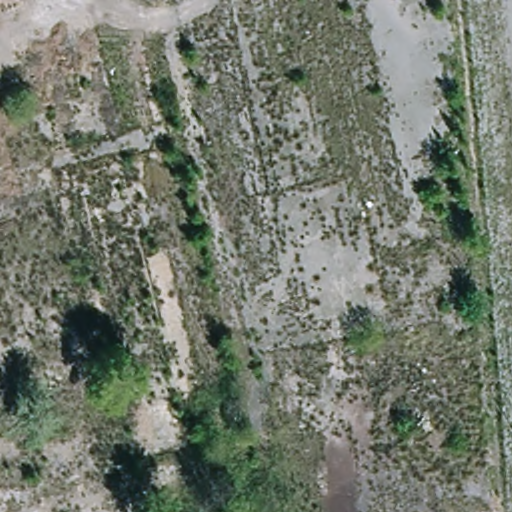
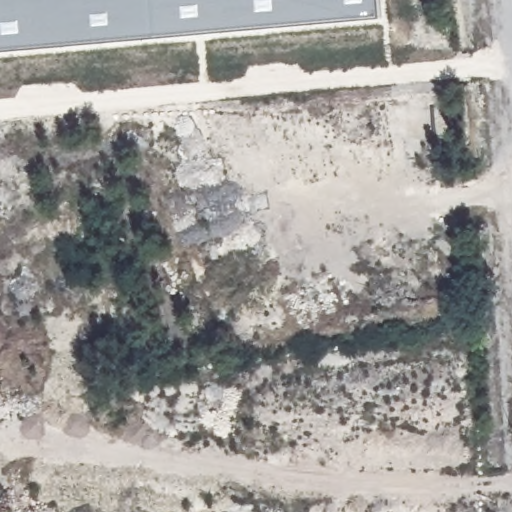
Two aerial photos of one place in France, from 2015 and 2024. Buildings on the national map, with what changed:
new [(380,18),(0,51),(0,0),(378,0),(380,18)]

